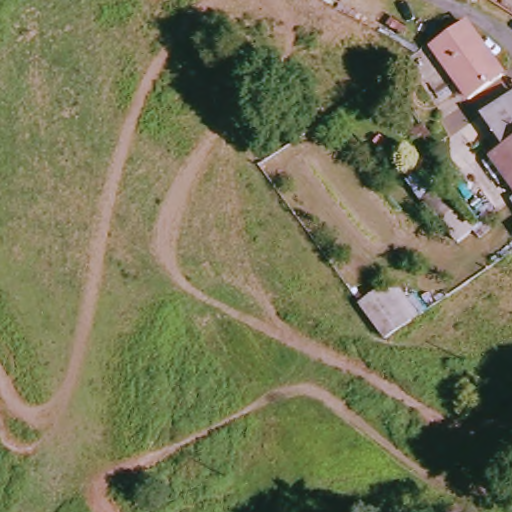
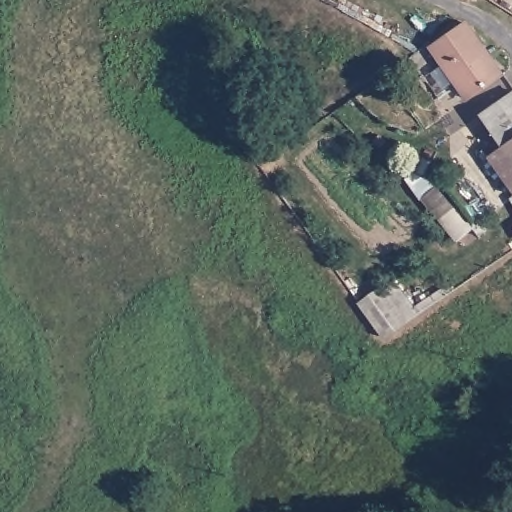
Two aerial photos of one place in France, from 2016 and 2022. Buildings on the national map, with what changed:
unchanged [(469,22),(506,74),(472,100),(434,47),(443,38),(469,22)]
unchanged [(502,141),(487,120),(512,99),(512,183),(490,150),(502,141)]

